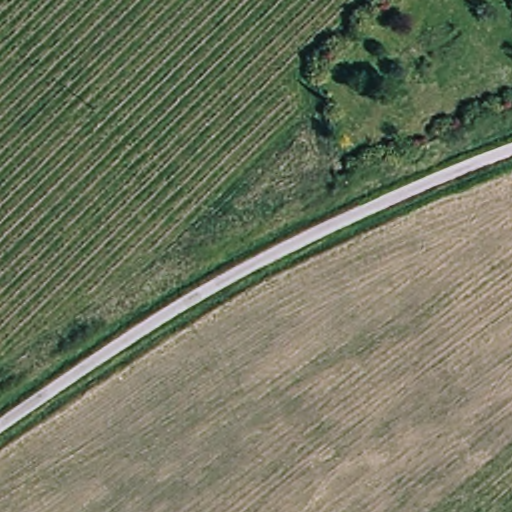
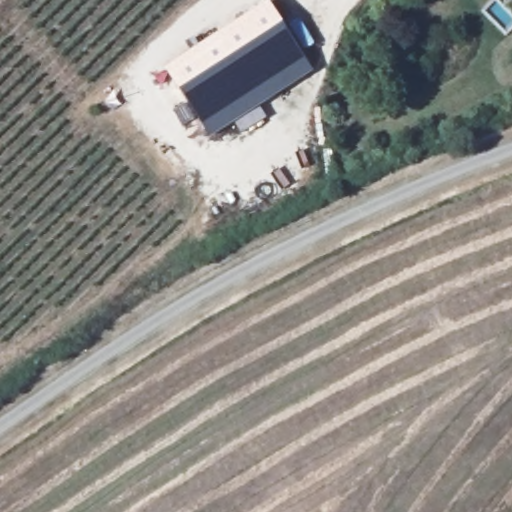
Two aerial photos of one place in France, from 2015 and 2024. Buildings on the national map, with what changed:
new [(210,139),(164,69),(267,1),(313,71),(210,139)]

